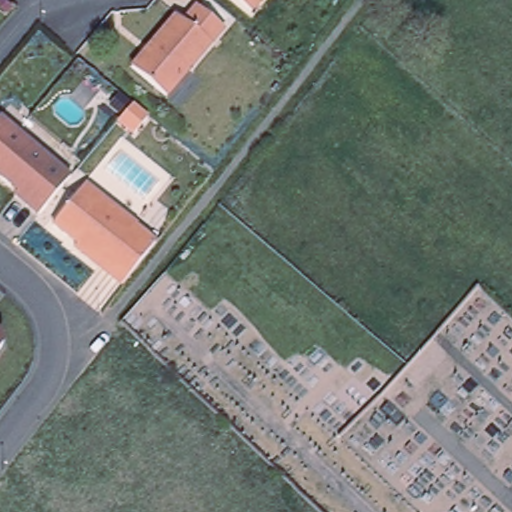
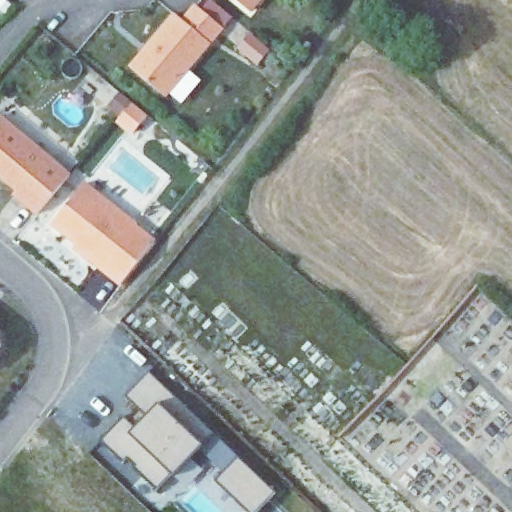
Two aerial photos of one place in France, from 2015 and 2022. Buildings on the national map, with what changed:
unchanged [(167,87),(132,56),(178,5),(186,11),(196,0),(204,0),(226,20),(192,59),(204,70),(179,98),(167,87)]
unchanged [(244,0),(260,0),(254,8),(244,0)]
unchanged [(139,111),(124,129),(109,115),(122,98),(139,111)]
unchanged [(52,154),(52,155),(72,175),(42,211),(19,191),(22,187),(0,168),(0,116),(4,111),(52,154)]
unchanged [(76,240),(71,235),(66,231),(52,221),(85,180),(134,220),(133,220),(155,238),(147,248),(122,282),(120,280),(119,281),(96,262),(72,243),(76,240)]
unchanged [(3,345),(0,349),(0,331),(3,333),(3,345)]
new [(276,494),(258,512),(248,512),(216,481),(227,471),(202,446),(191,456),(184,450),(166,469),(172,475),(157,490),(134,469),(137,467),(128,458),(123,462),(101,441),(124,417),(136,427),(147,415),(126,396),(149,372),(276,494)]

